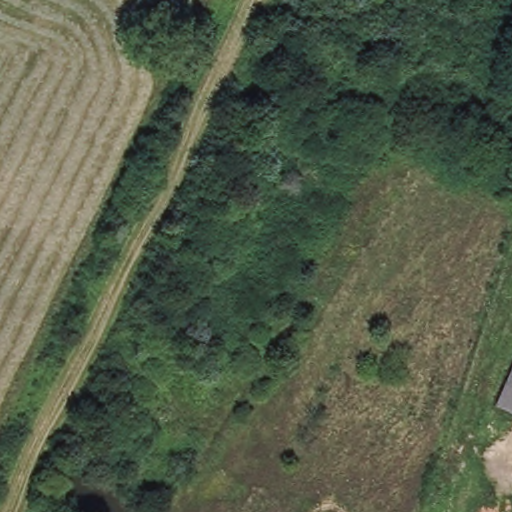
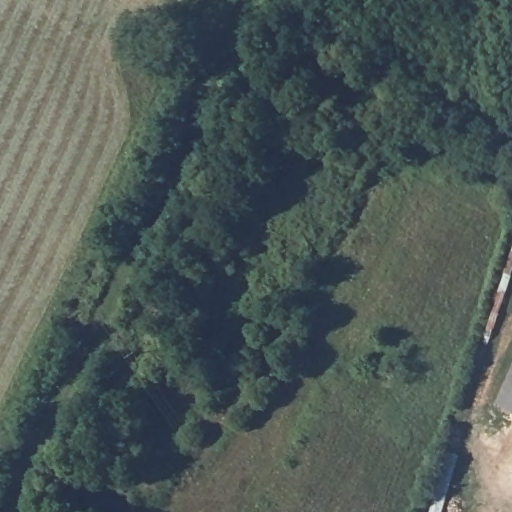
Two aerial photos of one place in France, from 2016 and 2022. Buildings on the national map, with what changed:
unchanged [(495,407),(512,369),(512,415),(495,407)]

